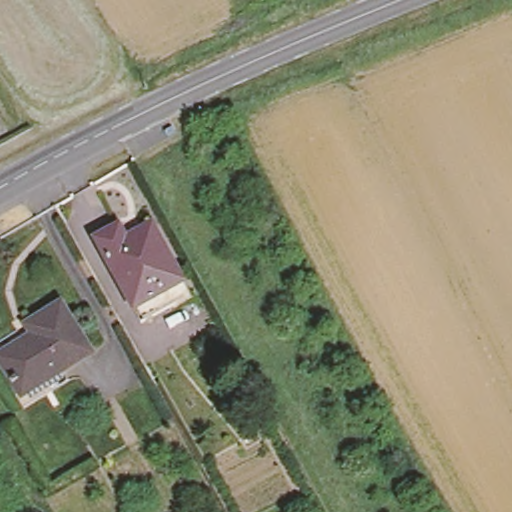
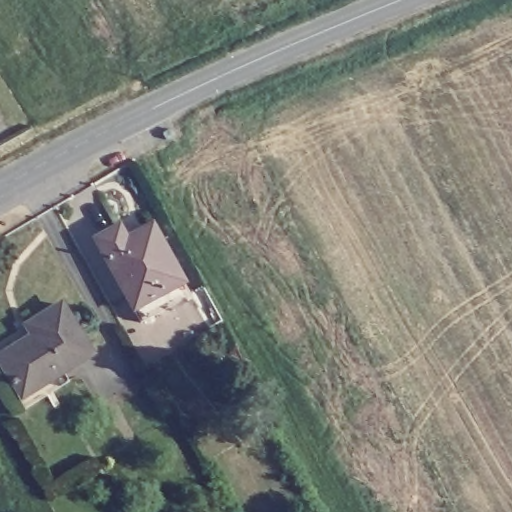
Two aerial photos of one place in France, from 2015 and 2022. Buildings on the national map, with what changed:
unchanged [(238,17),(242,19),(243,24),(240,27),(235,27),(234,25),(233,22),(235,19),(238,17)]
unchanged [(110,213),(118,227),(143,213),(182,282),(133,309),(87,226),(110,213)]
unchanged [(0,351),(30,332),(22,321),(55,301),(86,350),(20,392),(0,362),(0,351)]

